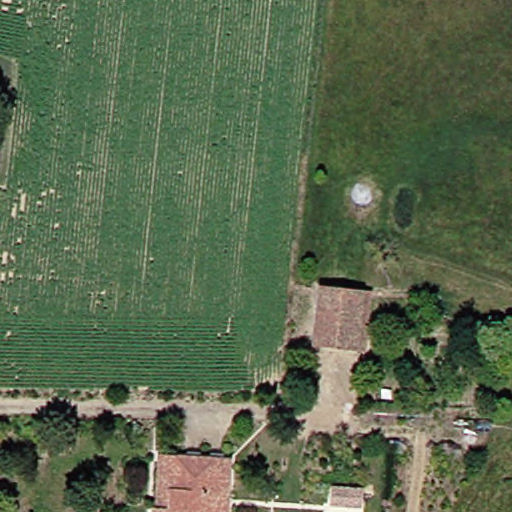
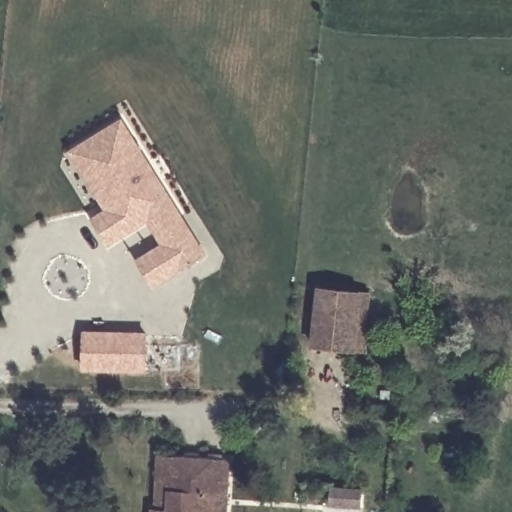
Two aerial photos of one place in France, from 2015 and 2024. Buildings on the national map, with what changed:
new [(171,211),(150,224),(147,219),(121,235),(106,211),(75,160),(84,155),(122,131),(171,211)]
new [(150,224),(171,211),(197,252),(175,266),(150,281),(135,256),(160,241),(150,224)]
unchanged [(353,354),(343,354),(301,351),(308,273),(348,276),(346,307),(357,307),(353,354)]
new [(81,331),(144,332),(143,370),(80,369),(81,331)]
unchanged [(140,507),(145,507),(145,452),(166,452),(217,452),(217,491),(217,512),(139,512),(140,507)]
new [(331,488),(362,490),(360,507),(330,505),(331,488)]

